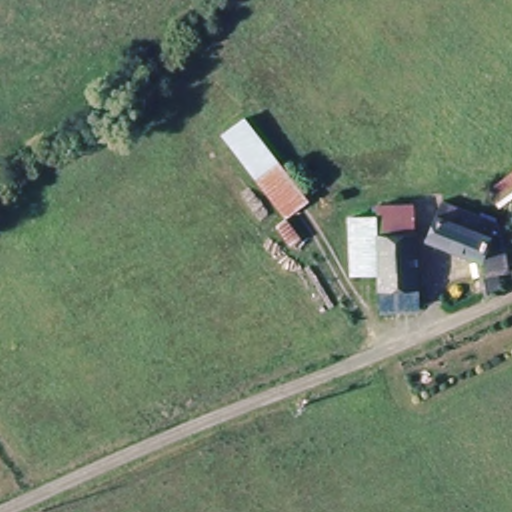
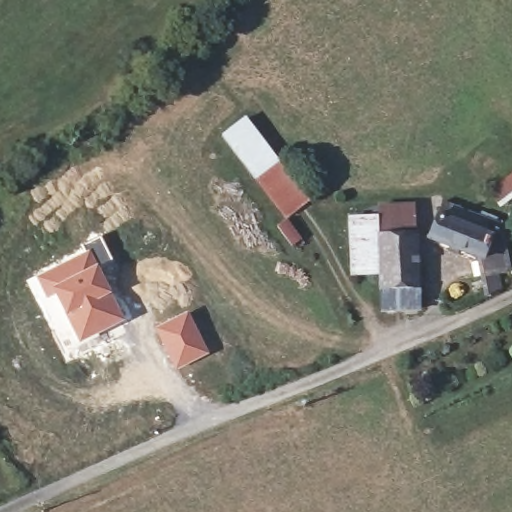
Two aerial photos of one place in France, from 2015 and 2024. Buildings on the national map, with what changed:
unchanged [(245,117),(312,200),(285,220),(220,137),(245,117)]
unchanged [(512,200),(507,205),(495,193),(497,190),(512,175),(512,200)]
unchanged [(416,196),(416,228),(377,229),(377,207),(377,196),(397,196),(416,196)]
unchanged [(426,238),(437,197),(476,208),(470,226),(490,232),(486,248),(496,251),(503,284),(481,289),(472,252),(426,238)]
new [(377,214),(377,229),(378,274),(349,276),(347,215),(377,214)]
unchanged [(416,228),(418,303),(379,304),(378,274),(377,229),(416,228)]
new [(90,248),(89,244),(100,237),(111,260),(100,266),(125,320),(79,343),(53,295),(46,298),(36,276),(90,248)]
new [(188,310),(210,353),(175,369),(154,328),(188,310)]

